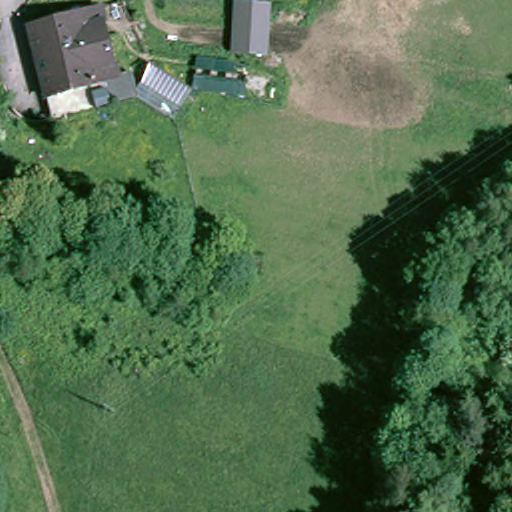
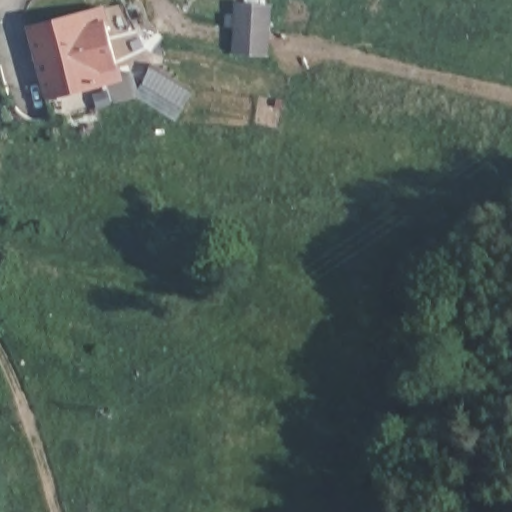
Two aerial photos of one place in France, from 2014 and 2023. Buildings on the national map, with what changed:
unchanged [(274,4),(270,57),(230,56),(232,3),(274,4)]
unchanged [(66,90),(50,95),(31,25),(56,18),(53,7),(61,4),(64,14),(102,4),(122,74),(112,76),(66,90)]
unchanged [(194,89),(175,122),(133,95),(150,63),(194,89)]
unchanged [(66,90),(112,76),(121,101),(90,112),(73,118),(66,90)]

